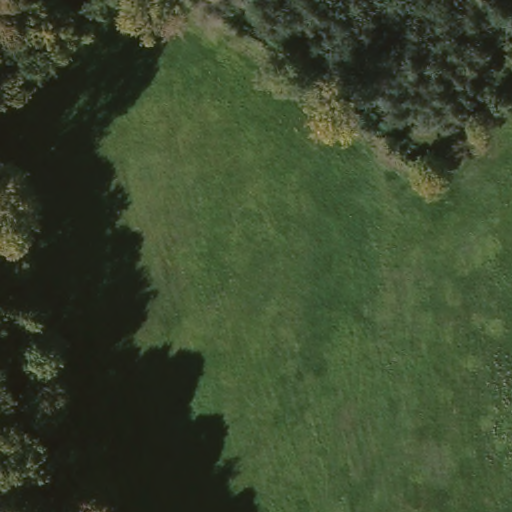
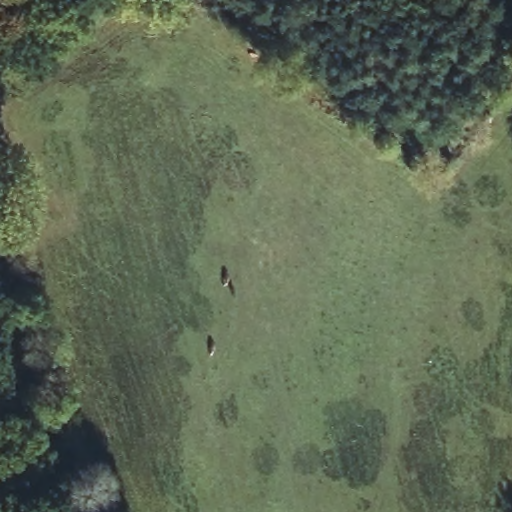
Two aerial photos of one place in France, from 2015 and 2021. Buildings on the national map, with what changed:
[]

